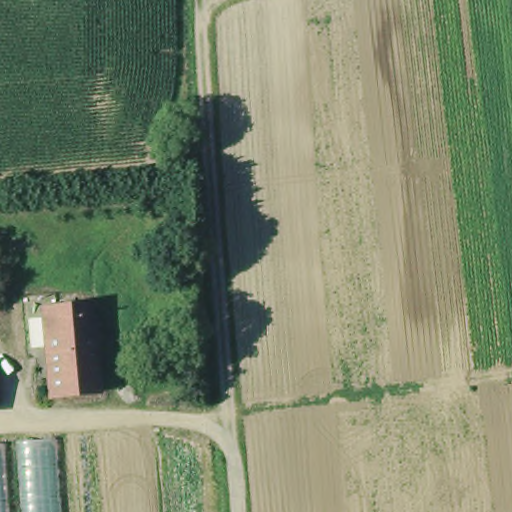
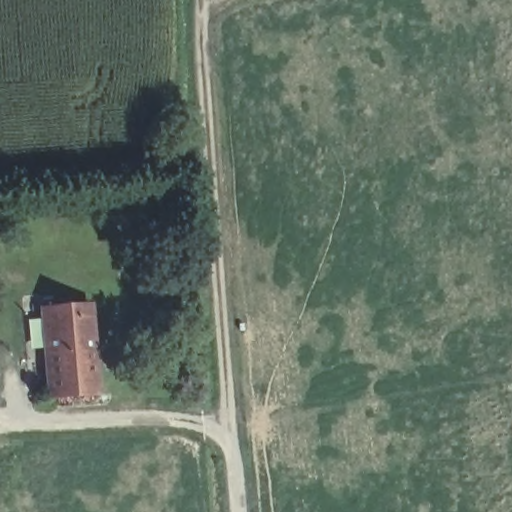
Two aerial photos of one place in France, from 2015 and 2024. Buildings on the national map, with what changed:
unchanged [(45,361),(40,319),(40,315),(79,311),(88,310),(97,397),(57,401),(50,402),(45,361)]
demolished [(0,512),(0,442),(52,440),(58,512),(0,512)]
new [(11,512),(0,512),(0,445),(7,445),(11,512)]

